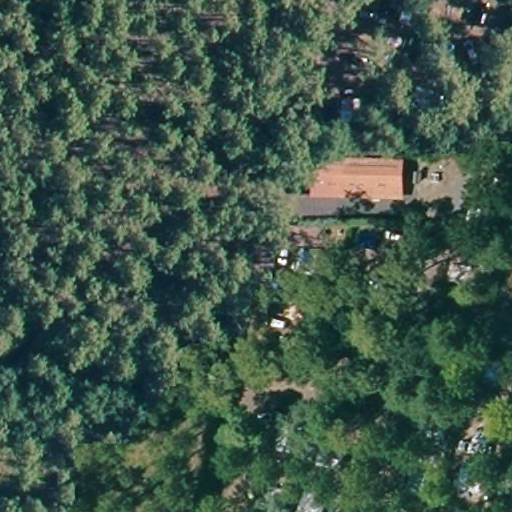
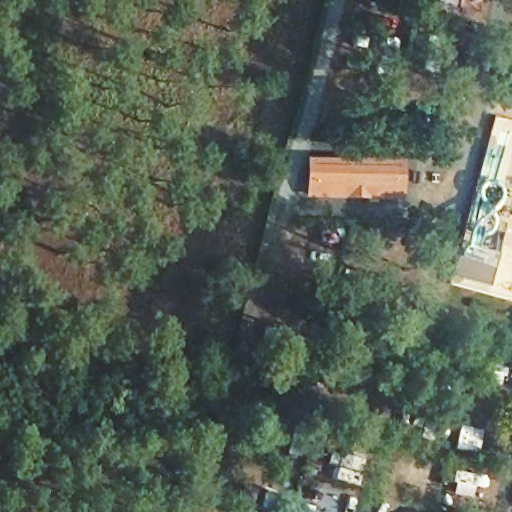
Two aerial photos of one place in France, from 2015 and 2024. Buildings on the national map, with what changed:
unchanged [(382,202),(381,191),(333,190),(332,204),(307,202),(308,190),(309,161),(398,165),(400,191),(400,201),(382,202)]

